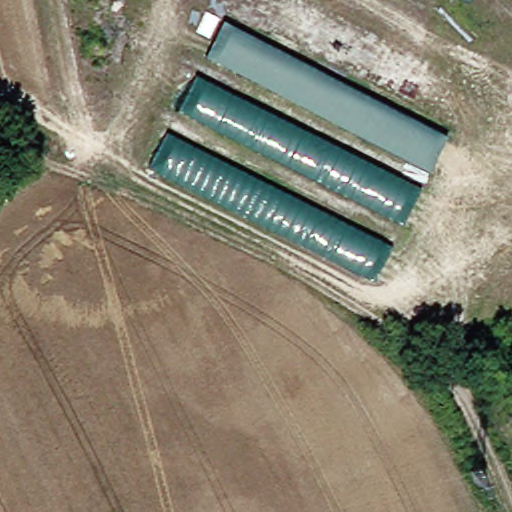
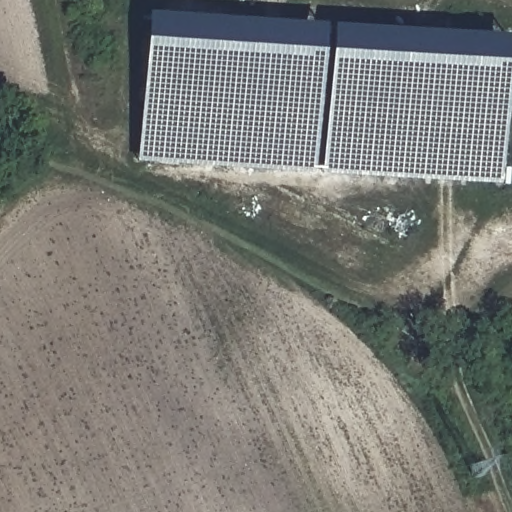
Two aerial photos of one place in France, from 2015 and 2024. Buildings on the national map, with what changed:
new [(147,14),(325,26),(316,174),(136,162),(147,14)]
demolished [(225,20),(445,132),(365,280),(147,170),(225,20)]
new [(331,27),(510,39),(500,185),(322,174),(331,27)]

